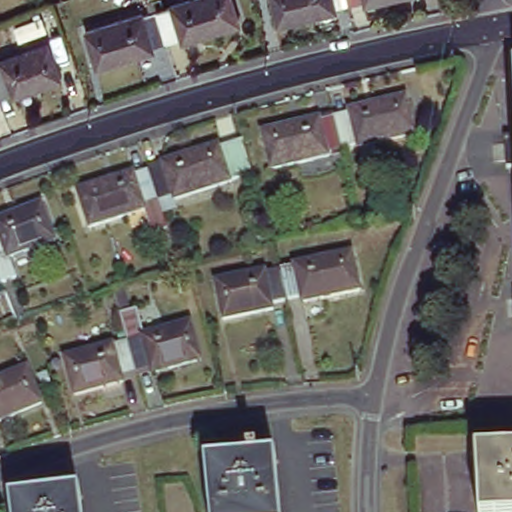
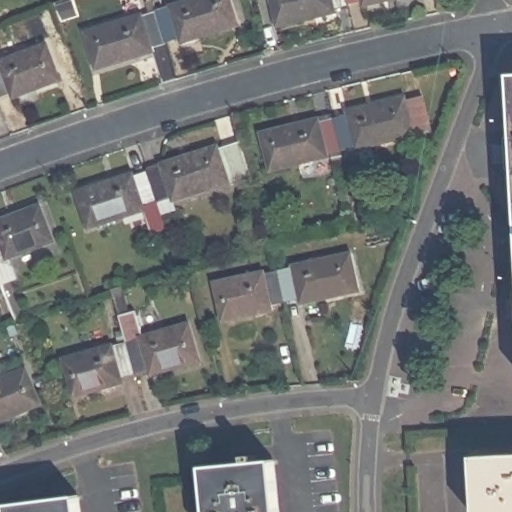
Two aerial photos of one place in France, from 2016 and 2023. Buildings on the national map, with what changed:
unchanged [(171,3),(182,0),(233,0),(239,22),(184,40),(181,36),(166,41),(157,11),(171,6),(171,3)]
unchanged [(278,20),(273,0),(337,0),(335,0),(336,5),(278,20)]
unchanged [(153,45),(154,49),(97,68),(85,31),(142,12),(144,15),(157,11),(166,41),(153,45)]
unchanged [(1,55),(47,37),(61,73),(16,91),(13,86),(0,92),(0,57),(1,57),(1,55)]
unchanged [(348,113),(348,109),(405,95),(414,132),(357,147),(356,143),(342,147),(335,117),(348,113)]
unchanged [(328,150),(329,154),(272,169),(262,132),(318,117),(321,121),(335,117),(342,147),(328,150)]
unchanged [(511,168),(509,136),(512,136),(512,168),(511,168)]
unchanged [(163,166),(162,162),(218,144),(220,148),(244,142),(252,173),(174,198),(178,209),(163,214),(158,200),(149,171),(163,166)]
unchanged [(163,214),(167,229),(153,233),(145,208),(89,226),(77,190),(133,172),(135,176),(149,171),(158,200),(163,214)]
unchanged [(59,238),(13,256),(20,277),(6,282),(0,267),(0,224),(0,220),(45,203),(59,238)]
unchanged [(293,266),(294,264),(350,252),(358,288),(301,300),(300,296),(286,299),(279,269),(293,266)]
unchanged [(0,267),(6,282),(0,285),(0,267)]
unchanged [(271,303),(272,307),(222,318),(214,281),(263,270),(264,272),(279,269),(286,299),(271,303)]
unchanged [(111,288),(123,284),(130,310),(136,309),(143,335),(188,322),(198,358),(151,372),(149,367),(135,371),(126,342),(118,314),(111,288)]
unchanged [(121,374),(122,379),(74,393),(63,357),(111,343),(112,345),(126,342),(135,371),(121,374)]
unchanged [(45,398),(0,417),(0,375),(31,363),(45,398)]
unchanged [(512,452),(512,512),(479,512),(475,454),(512,452)]
unchanged [(205,465),(275,458),(280,512),(210,512),(205,465)]
unchanged [(83,493),(85,512),(16,512),(15,502),(83,493)]

